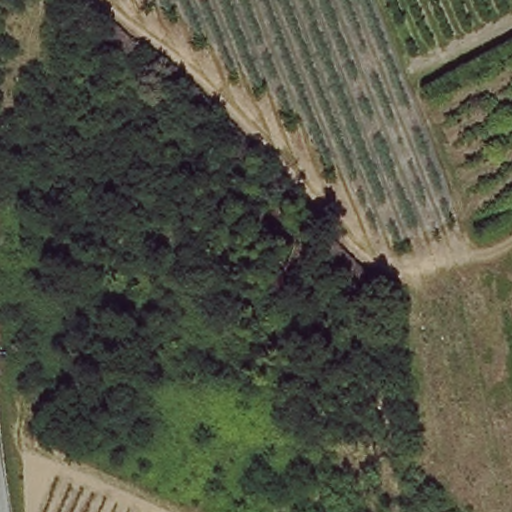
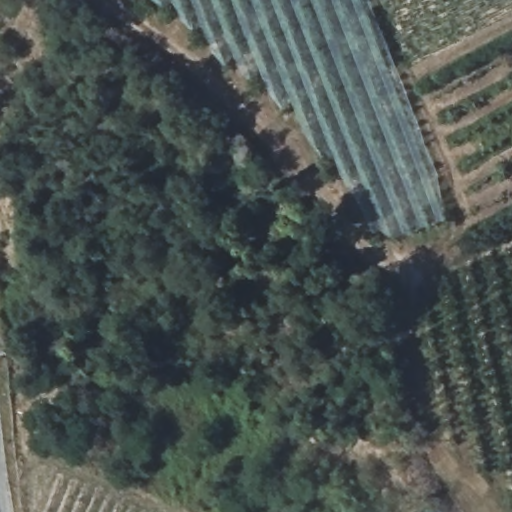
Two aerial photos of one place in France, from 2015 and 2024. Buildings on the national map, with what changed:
[]

